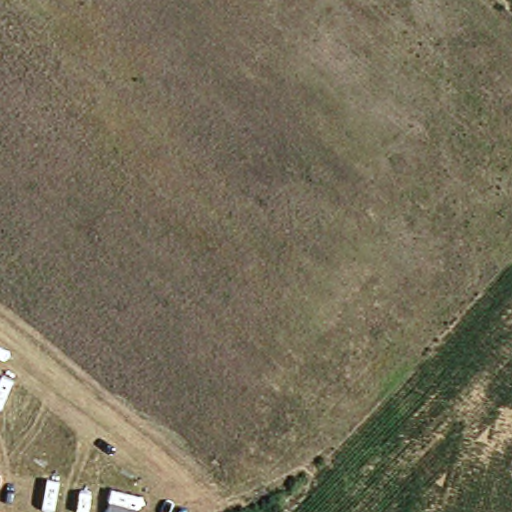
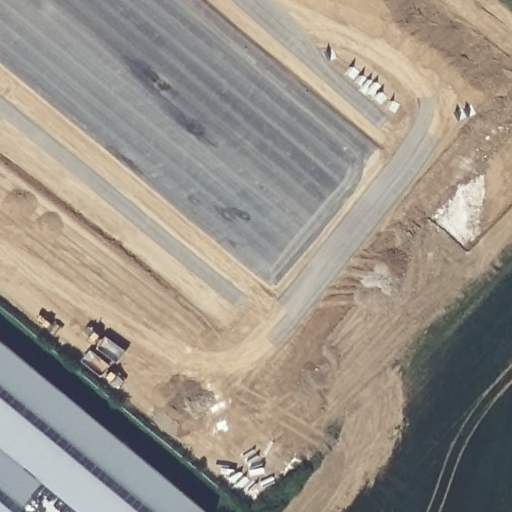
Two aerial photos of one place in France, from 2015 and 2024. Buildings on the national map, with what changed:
new [(47,470),(13,512),(0,512),(0,342),(202,505),(197,512),(99,512),(47,470)]

